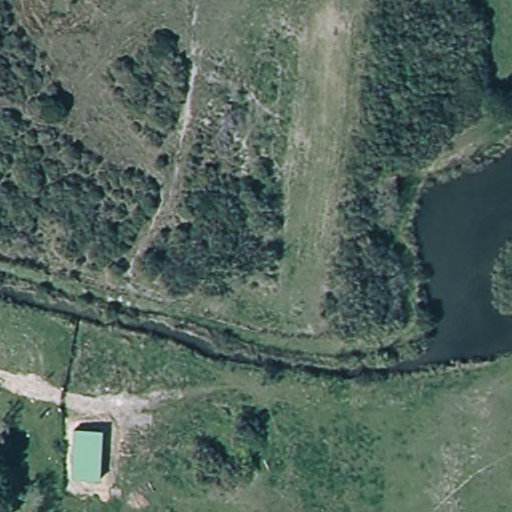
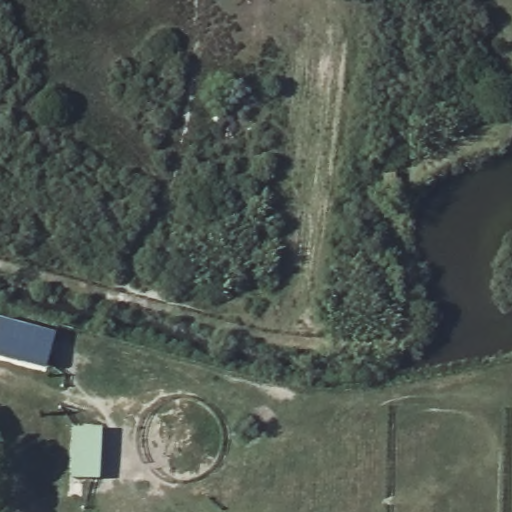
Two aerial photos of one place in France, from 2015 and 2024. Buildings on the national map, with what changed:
new [(47,369),(0,356),(0,318),(56,334),(47,369)]
unchanged [(100,481),(72,478),(78,431),(103,432),(100,481)]

